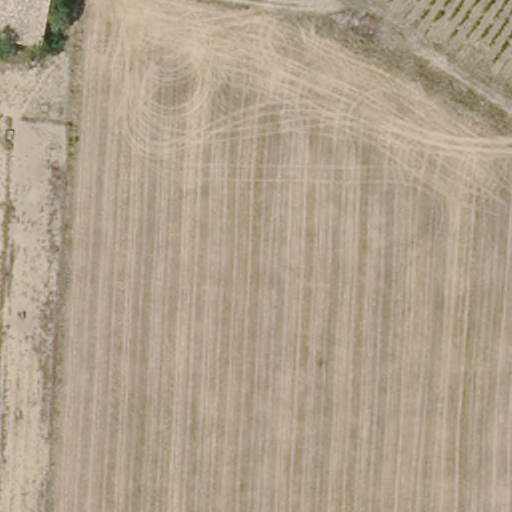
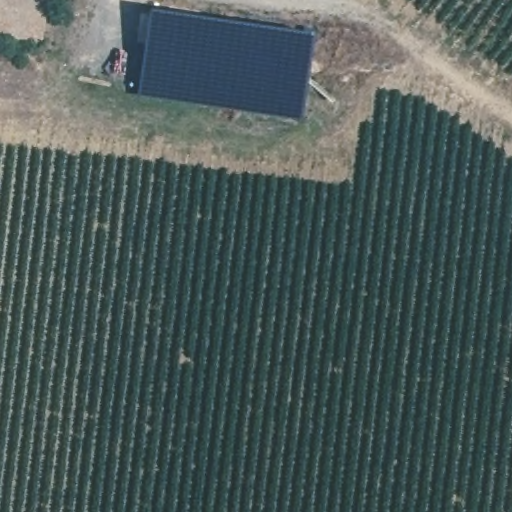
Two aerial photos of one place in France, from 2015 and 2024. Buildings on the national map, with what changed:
unchanged [(0,3),(0,0),(55,0),(53,12),(0,3)]
unchanged [(0,30),(0,3),(53,12),(48,38),(0,30)]
new [(153,11),(315,36),(302,119),(140,94),(153,11)]

